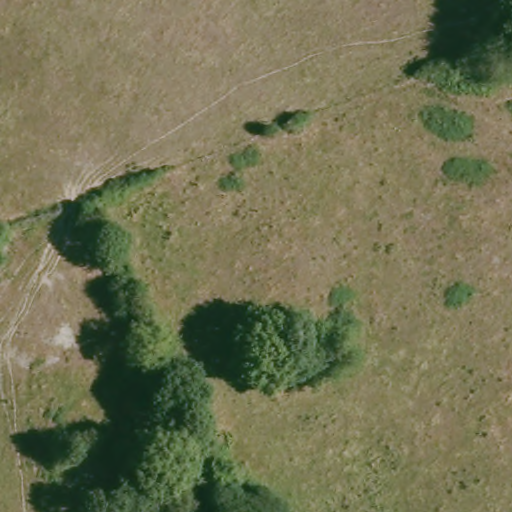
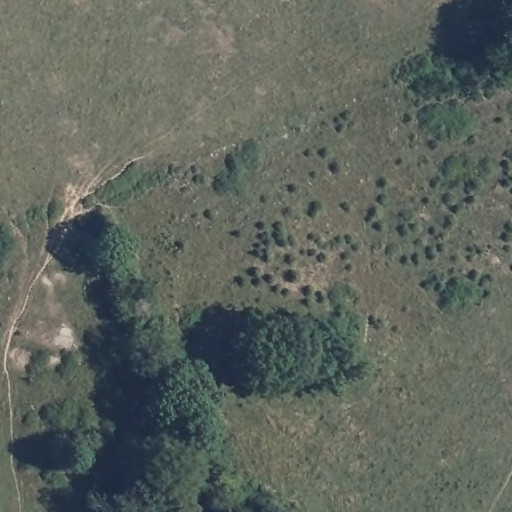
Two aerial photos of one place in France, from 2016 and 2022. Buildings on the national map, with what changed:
[]

